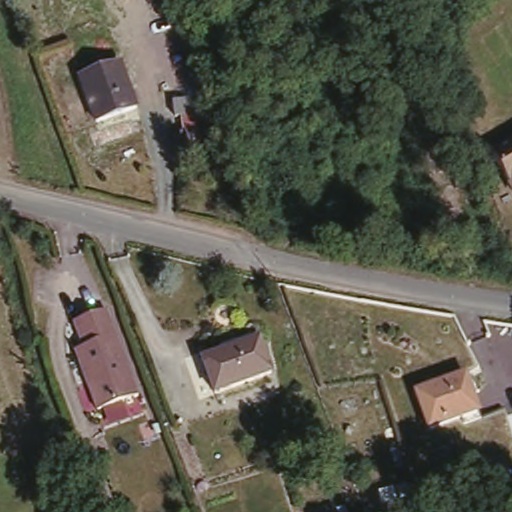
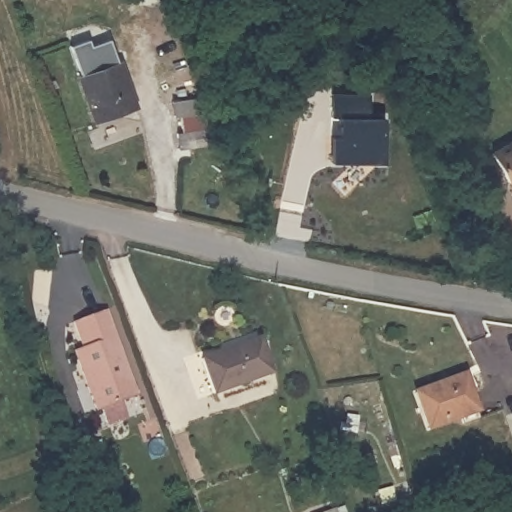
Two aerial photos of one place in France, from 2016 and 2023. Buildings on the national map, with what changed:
unchanged [(120,56),(141,102),(99,118),(80,70),(120,56)]
new [(371,119),(385,119),(383,160),(330,159),(331,133),(332,93),(371,94),(371,119)]
unchanged [(202,108),(224,159),(196,170),(188,155),(196,150),(189,133),(181,136),(174,119),(202,108)]
unchanged [(512,142),(512,178),(496,151),(512,142)]
unchanged [(110,309),(142,395),(102,410),(79,350),(88,347),(78,321),(110,309)]
unchanged [(254,336),(265,369),(212,388),(200,355),(254,336)]
unchanged [(462,374),(476,409),(430,426),(418,390),(462,374)]

